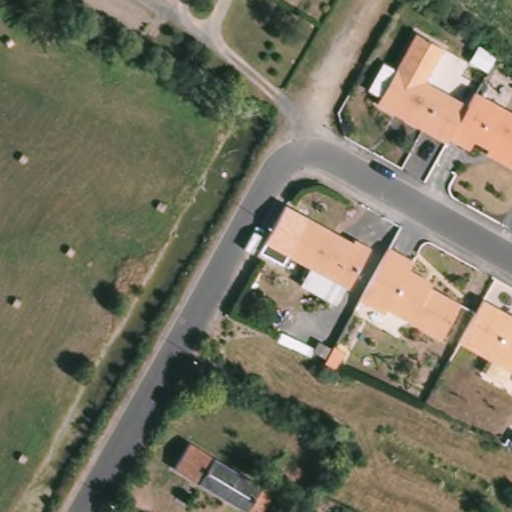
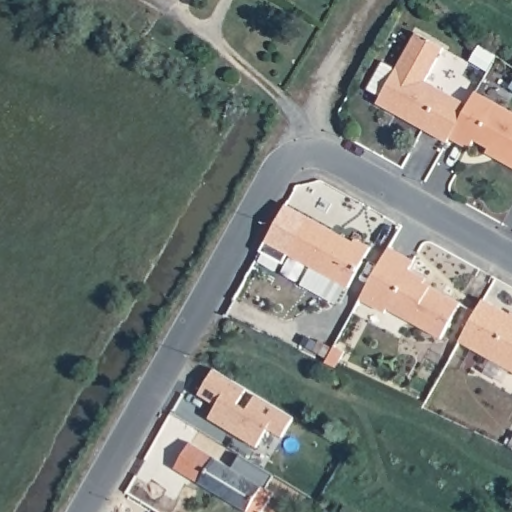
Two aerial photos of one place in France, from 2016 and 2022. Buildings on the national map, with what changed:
unchanged [(382,103),(421,33),(448,48),(430,81),(473,105),(454,138),(452,142),(409,118),(401,113),(382,103)]
unchanged [(480,141),(474,150),(454,138),(473,105),(480,92),(512,111),(512,165),(498,158),(492,154),(494,149),(480,141)]
unchanged [(292,254),(312,217),(335,230),(358,242),(359,239),(375,248),(352,288),(292,254)]
unchanged [(445,338),(391,308),(388,312),(364,299),(393,247),(418,261),(413,269),(430,279),(437,282),(435,287),(464,303),(445,338)]
unchanged [(483,307),(487,300),(512,313),(512,369),(463,342),(483,307)]
new [(246,386),(237,401),(246,407),(255,392),(293,415),(281,434),(267,426),(256,444),(208,415),(216,402),(211,400),(198,391),(213,366),(246,386)]
unchanged [(190,442),(272,493),(260,512),(249,512),(175,468),(190,442)]
new [(164,512),(161,512),(161,511),(164,512)]

